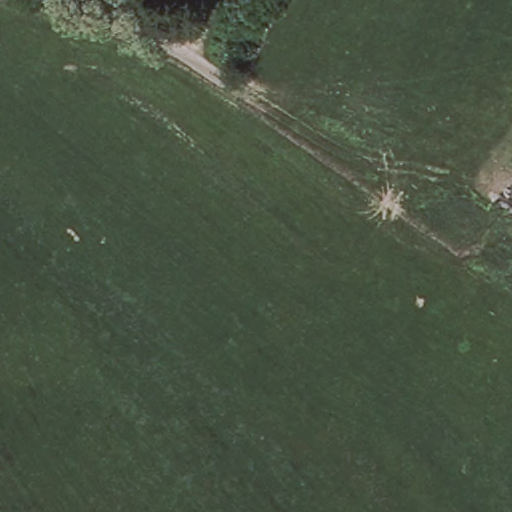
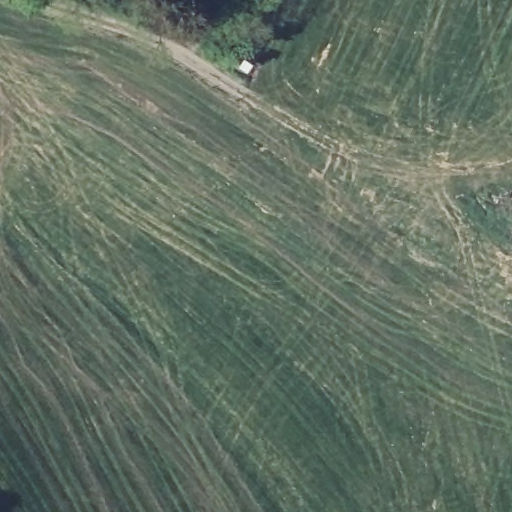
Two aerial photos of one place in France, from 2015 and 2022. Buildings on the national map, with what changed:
unchanged [(503,190),(512,194),(512,203),(499,197),(503,190)]

